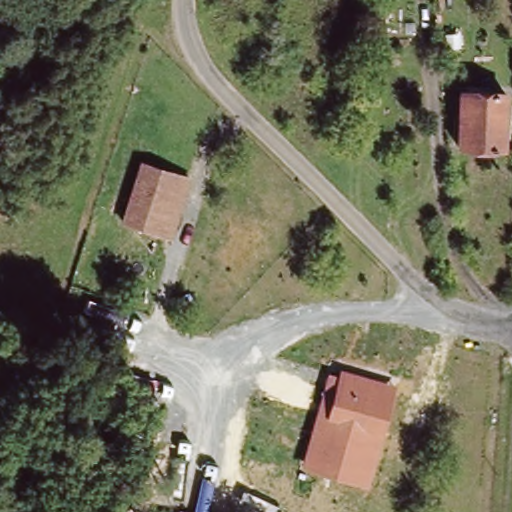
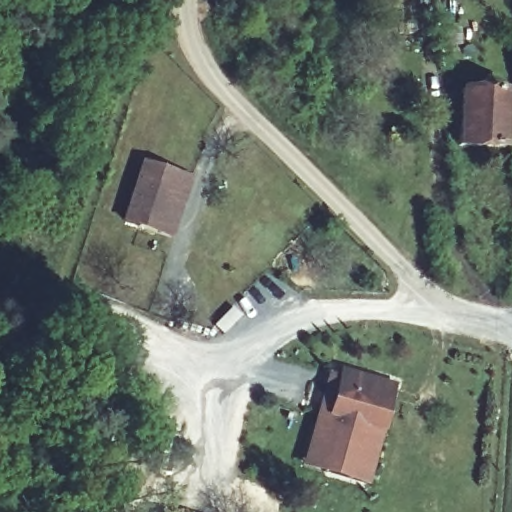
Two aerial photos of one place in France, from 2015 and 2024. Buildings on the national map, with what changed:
unchanged [(510,94),(507,124),(463,121),(465,92),(510,94)]
unchanged [(507,124),(505,151),(461,146),(463,121),(507,124)]
unchanged [(175,218),(152,211),(148,226),(133,220),(153,162),(188,173),(175,218)]
unchanged [(199,176),(180,236),(148,226),(152,211),(175,218),(188,173),(199,176)]
unchanged [(340,375),(343,367),(400,383),(371,488),(301,467),(328,370),(340,375)]

